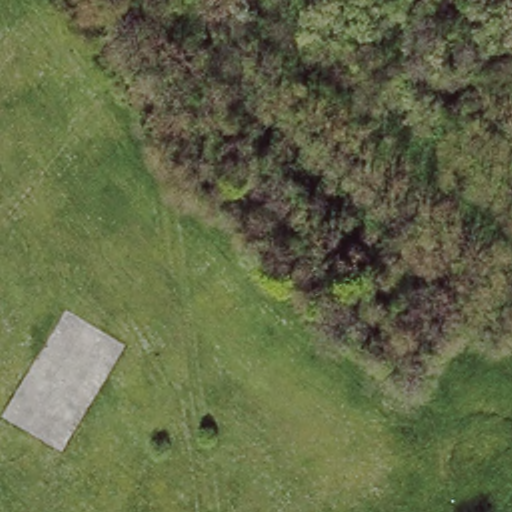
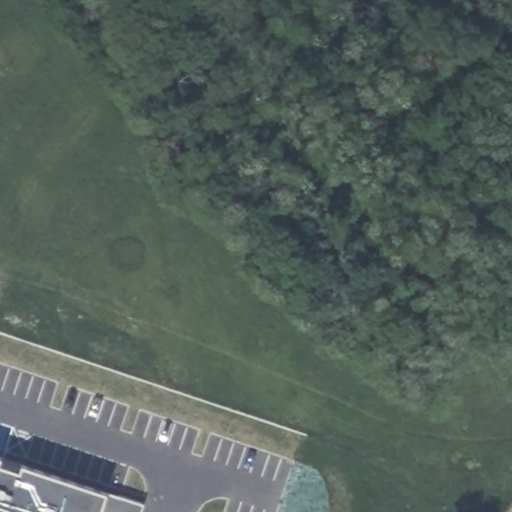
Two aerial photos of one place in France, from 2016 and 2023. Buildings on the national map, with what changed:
new [(135,497),(129,512),(0,512),(0,445),(135,497)]

